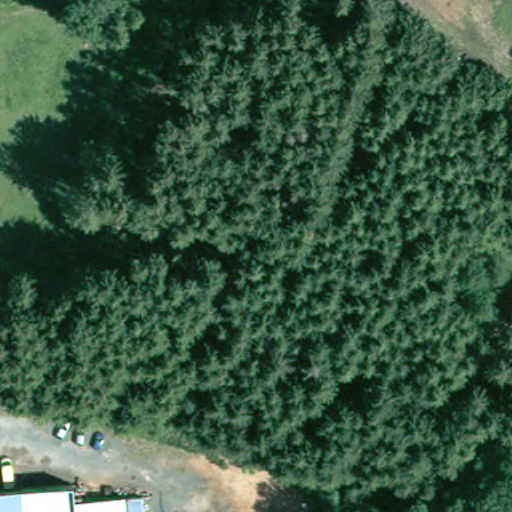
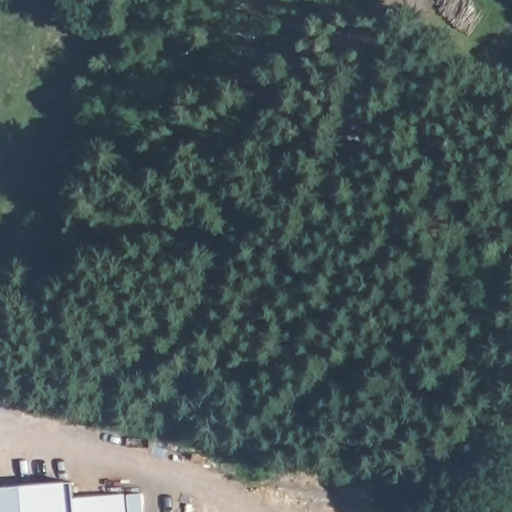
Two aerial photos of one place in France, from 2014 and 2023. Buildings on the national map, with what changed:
unchanged [(70,508),(70,512),(0,512),(0,489),(68,483),(70,508)]
unchanged [(124,504),(124,512),(70,512),(70,508),(124,504)]

